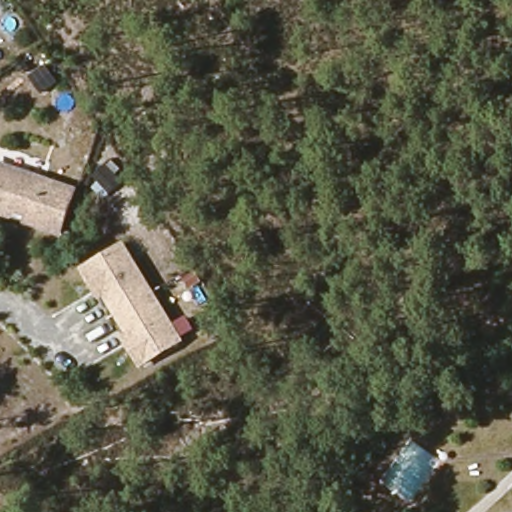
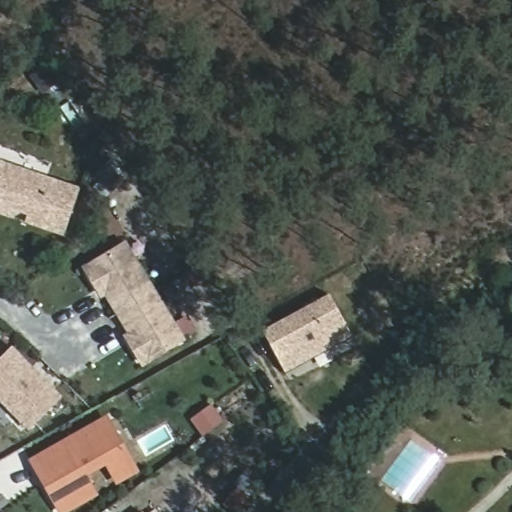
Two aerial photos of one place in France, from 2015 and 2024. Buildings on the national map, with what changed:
unchanged [(0,220),(0,175),(71,187),(64,231),(28,225),(0,220)]
unchanged [(176,338),(141,359),(84,265),(118,243),(176,338)]
new [(328,294),(352,337),(285,374),(261,331),(328,294)]
new [(63,401),(33,430),(0,397),(0,368),(15,353),(63,401)]
new [(223,421),(201,437),(190,420),(211,405),(223,421)]
new [(106,419),(122,446),(82,471),(92,487),(60,506),(35,464),(106,419)]

